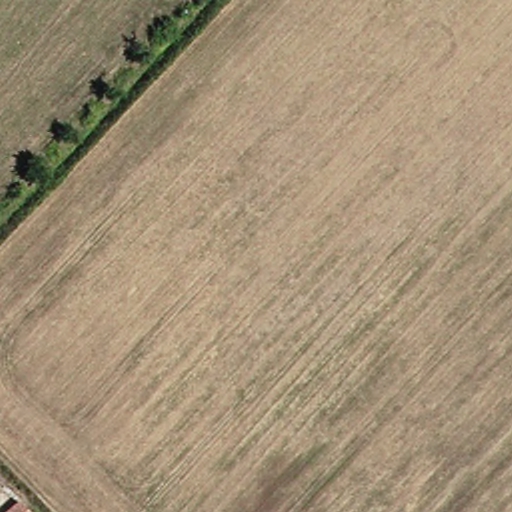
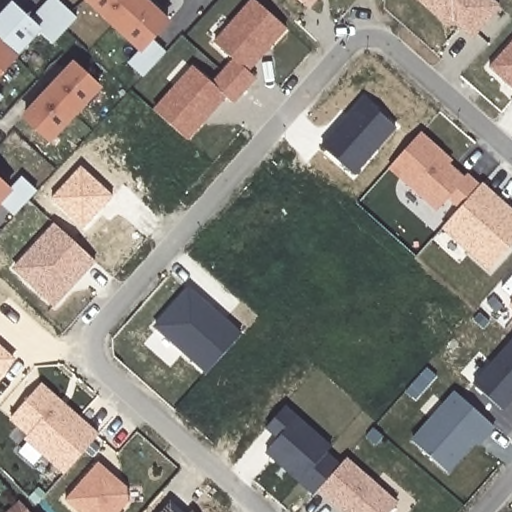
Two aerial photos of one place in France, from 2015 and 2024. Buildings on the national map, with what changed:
new [(12,6),(30,22),(51,0),(57,0),(75,18),(51,44),(38,32),(0,72),(0,18),(12,6)]
new [(168,22),(151,40),(165,54),(144,77),(129,62),(141,50),(87,0),(144,0),(168,22)]
new [(153,109),(193,65),(211,82),(232,59),(213,42),(251,0),(254,0),(287,29),(249,72),(257,79),(234,105),(227,98),(188,141),(153,109)]
new [(298,0),(318,0),(309,10),(298,0)]
new [(453,21),(446,28),(416,0),(493,0),(501,8),(472,40),(453,21)]
new [(512,89),(489,69),(512,43),(512,89)]
new [(74,65),(99,87),(50,140),(25,117),(74,65)]
new [(320,145),(363,96),(397,128),(354,176),(320,145)]
new [(389,168),(420,134),(442,154),(451,162),(448,166),(439,157),(463,180),(466,176),(479,187),(460,209),(448,198),(437,211),(389,168)]
new [(50,199),(81,167),(114,197),(83,229),(50,199)]
new [(10,192),(22,179),(36,192),(15,215),(0,202),(0,203),(0,183),(10,192)]
new [(481,185),(512,213),(512,245),(490,270),(443,227),(481,185)]
new [(12,269),(53,224),(96,262),(54,307),(12,269)]
new [(152,327),(189,286),(241,333),(207,373),(152,327)]
new [(512,307),(510,305),(512,303),(512,307)]
new [(512,339),(512,402),(504,411),(472,384),(512,339)]
new [(16,360),(0,378),(0,346),(16,360)]
new [(98,436),(66,473),(26,438),(29,435),(11,419),(41,385),(98,436)]
new [(474,442),(447,472),(412,441),(455,393),(493,427),(482,440),(477,446),(474,442)]
new [(313,496),(264,453),(277,440),(265,428),(287,406),(332,447),(327,452),(341,465),(319,489),(313,496)]
new [(345,512),(319,489),(345,459),(396,503),(388,512),(345,512)]
new [(98,462),(128,488),(128,503),(120,512),(79,512),(65,500),(98,462)]
new [(30,512),(10,512),(21,502),(30,512)]

